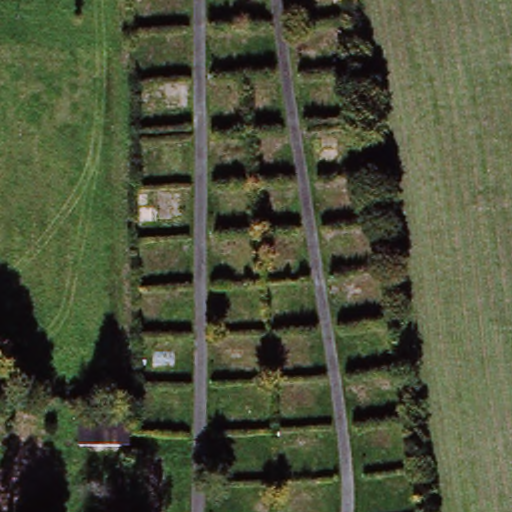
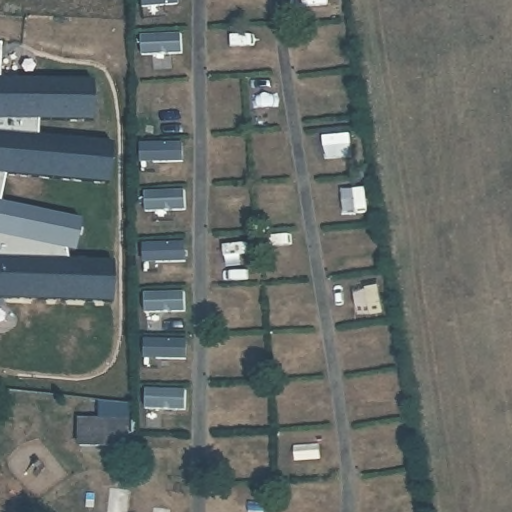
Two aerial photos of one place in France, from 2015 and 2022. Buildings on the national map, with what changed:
new [(87,58),(78,315),(0,312),(0,55),(87,58)]
unchanged [(83,430),(133,432),(133,459),(82,459),(83,430)]

